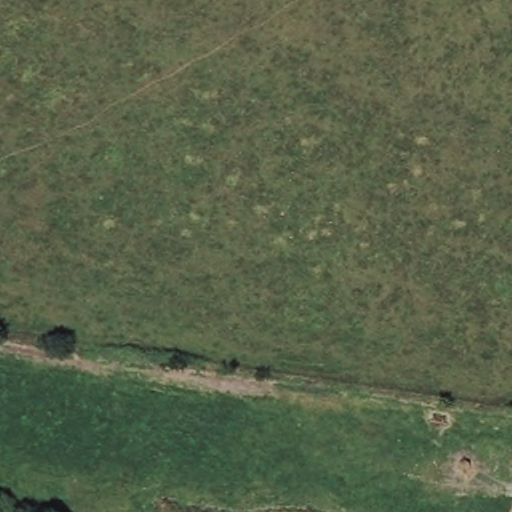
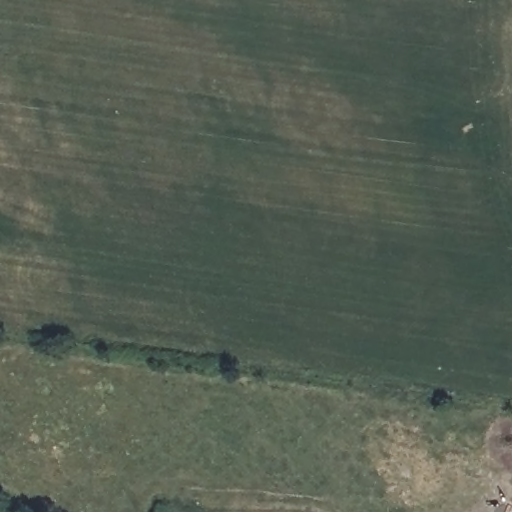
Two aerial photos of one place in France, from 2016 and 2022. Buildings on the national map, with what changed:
[]

